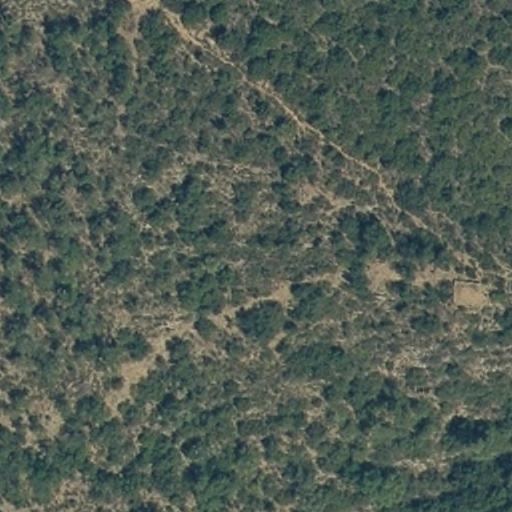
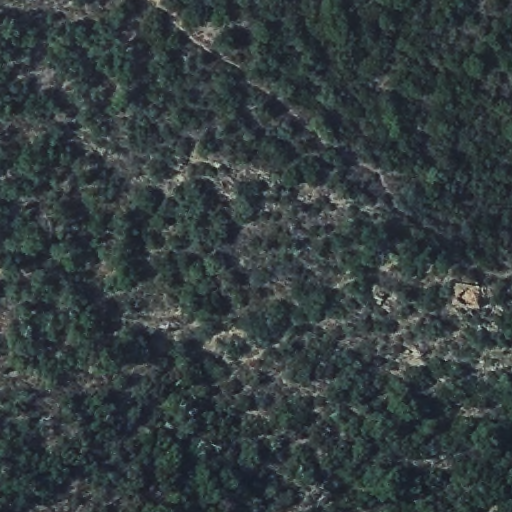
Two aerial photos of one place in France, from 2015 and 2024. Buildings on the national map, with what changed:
unchanged [(450,280),(478,282),(480,304),(450,302),(450,280)]

